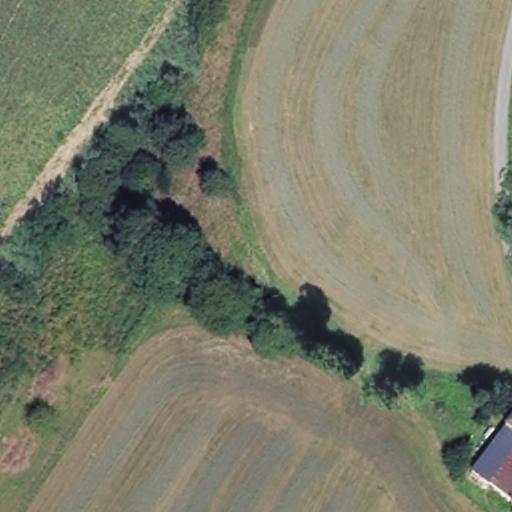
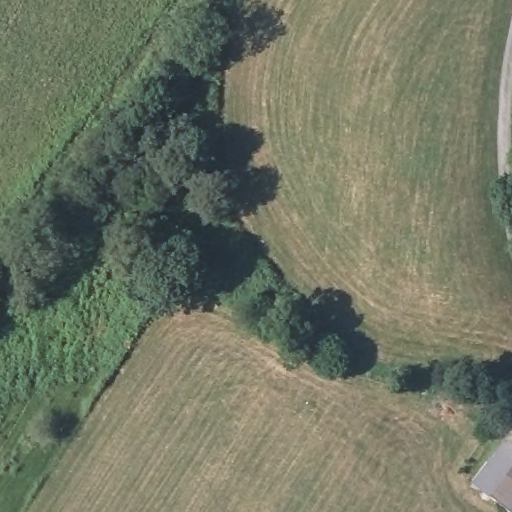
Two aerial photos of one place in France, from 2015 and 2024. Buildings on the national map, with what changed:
unchanged [(512,434),(512,512),(474,483),(512,434)]

